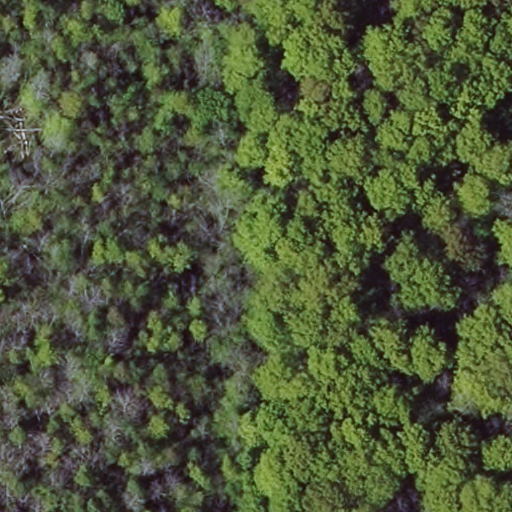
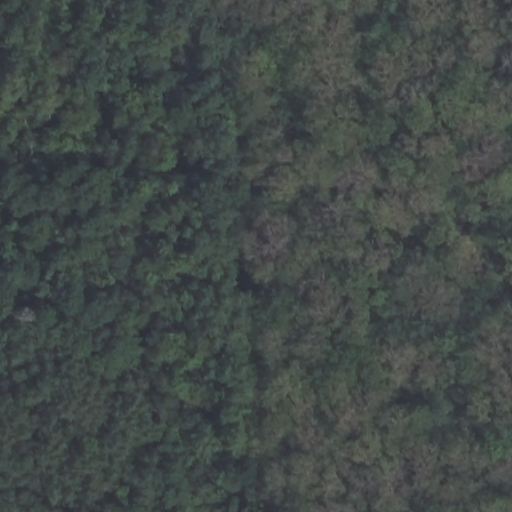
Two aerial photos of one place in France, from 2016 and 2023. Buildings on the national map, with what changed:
[]

